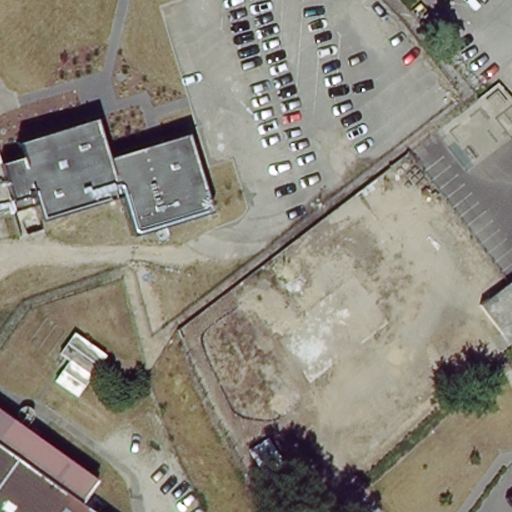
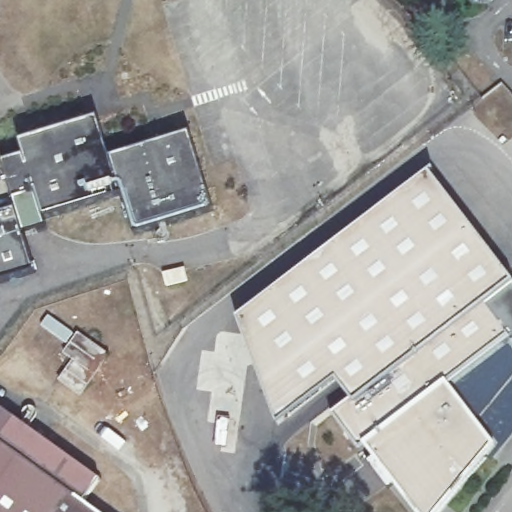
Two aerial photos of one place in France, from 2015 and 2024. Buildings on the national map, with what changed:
demolished [(71,77),(21,83),(12,19),(4,7),(10,0),(65,0),(63,12),(71,77)]
unchanged [(213,212),(134,236),(121,197),(43,222),(35,195),(15,202),(3,163),(25,157),(19,144),(97,121),(110,159),(188,135),(213,212)]
unchanged [(15,202),(18,212),(0,218),(0,154),(3,163),(15,202)]
new [(486,307),(512,341),(447,389),(493,448),(439,512),(413,512),(366,451),(361,456),(333,420),(351,407),(334,385),(276,428),(239,319),(427,179),(512,279),(512,287),(486,307)]
new [(34,277),(0,286),(0,218),(18,212),(34,277)]
unchanged [(486,307),(512,287),(512,341),(486,307)]
unchanged [(78,333),(106,355),(78,396),(55,381),(68,361),(59,353),(64,344),(78,333)]
unchanged [(86,471),(106,485),(90,509),(94,512),(0,512),(0,415),(83,474),(86,471)]
unchanged [(276,444),(292,470),(274,481),(258,456),(276,444)]

